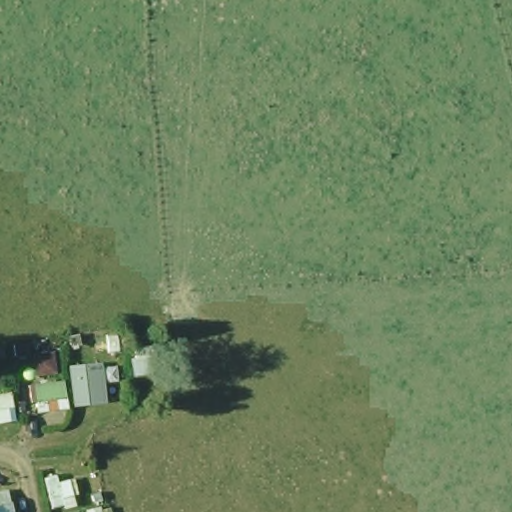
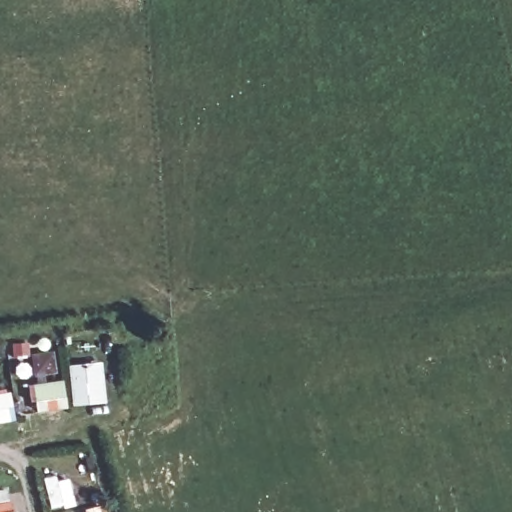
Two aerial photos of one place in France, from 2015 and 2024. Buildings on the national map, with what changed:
unchanged [(105,400),(73,401),(68,364),(99,360),(105,400)]

